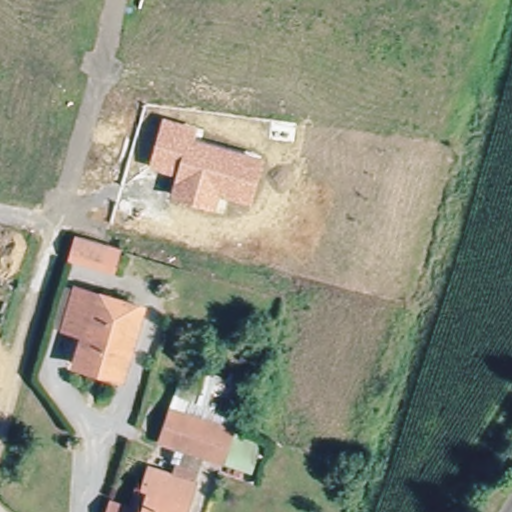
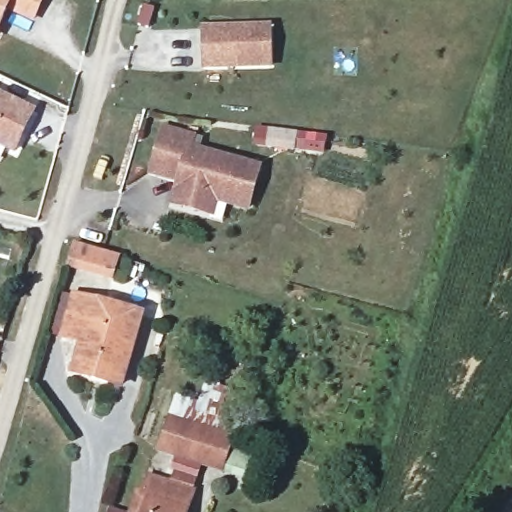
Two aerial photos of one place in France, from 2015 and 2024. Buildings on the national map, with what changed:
new [(7,12),(0,29),(0,0),(45,0),(34,24),(7,12)]
new [(203,70),(201,27),(272,25),(274,69),(203,70)]
new [(15,153),(0,146),(0,91),(36,109),(15,153)]
unchanged [(162,125),(197,134),(194,145),(264,165),(251,212),(219,204),(216,218),(170,206),(176,183),(148,176),(162,125)]
new [(270,126),(294,130),(292,149),(267,145),(270,126)]
unchanged [(81,250),(110,259),(111,260),(106,280),(73,271),(81,250)]
unchanged [(81,335),(60,331),(71,289),(92,295),(139,310),(117,379),(71,366),(81,335)]
unchanged [(156,445),(170,397),(171,395),(188,399),(188,397),(193,380),(243,395),(237,412),(231,438),(228,445),(186,411),(185,410),(175,454),(156,445)]
unchanged [(223,466),(175,454),(185,410),(186,411),(228,445),(223,466)]
unchanged [(146,501),(138,502),(146,480),(170,485),(171,475),(192,480),(183,512),(144,512),(146,501)]

